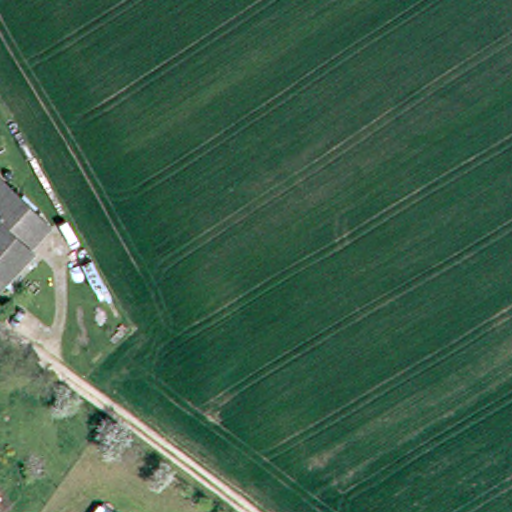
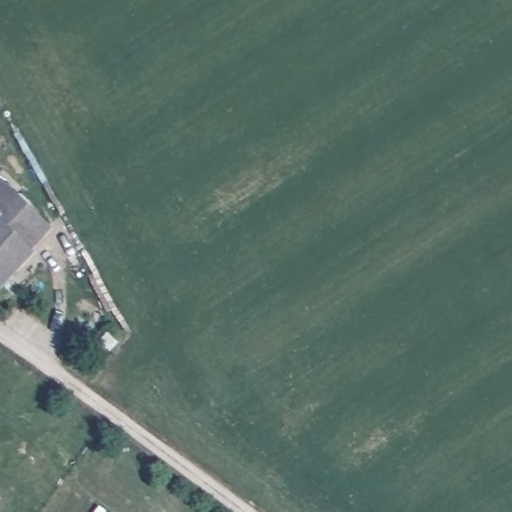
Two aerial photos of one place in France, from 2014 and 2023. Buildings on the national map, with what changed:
unchanged [(48,231),(27,253),(30,256),(0,288),(0,184),(29,213),(48,231)]

